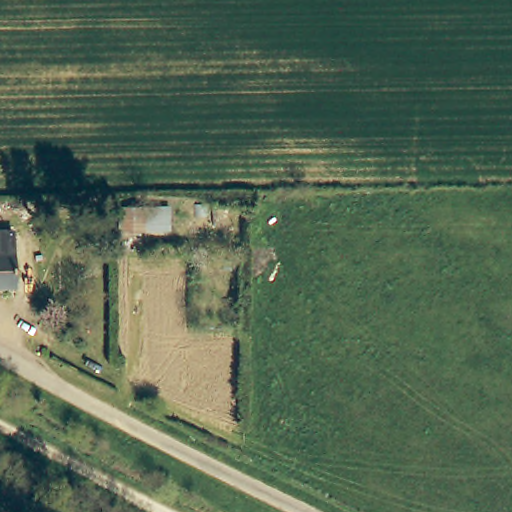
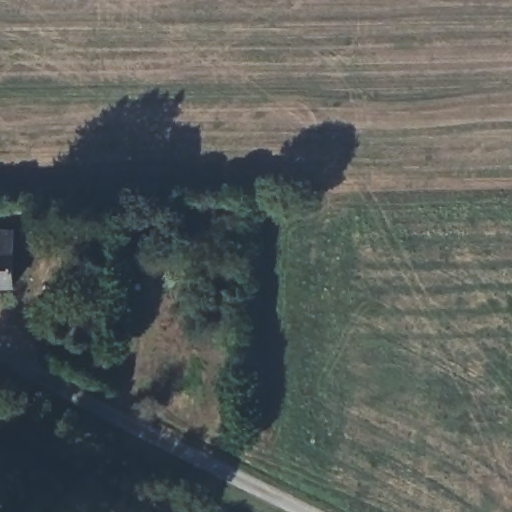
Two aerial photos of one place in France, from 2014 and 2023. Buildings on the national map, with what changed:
unchanged [(126,235),(125,207),(168,207),(169,234),(126,235)]
unchanged [(16,255),(16,291),(0,291),(0,255),(16,255)]

